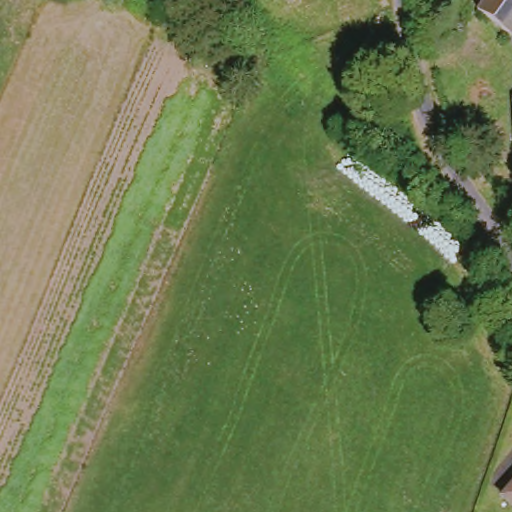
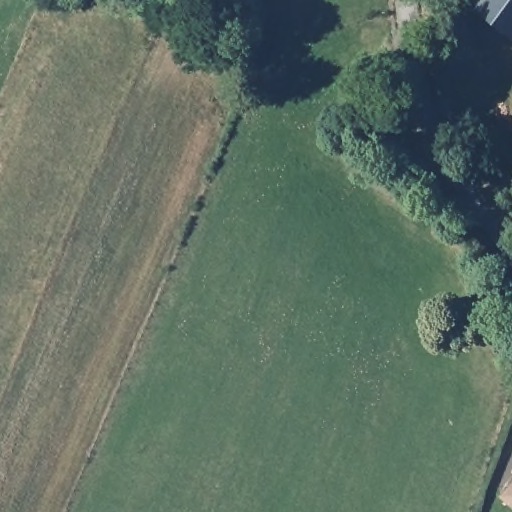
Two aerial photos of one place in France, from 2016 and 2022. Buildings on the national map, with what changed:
unchanged [(432,0),(460,0),(457,15),(430,8),(430,4),(432,0)]
unchanged [(482,0),(512,0),(512,27),(480,4),(482,0)]
unchanged [(512,480),(512,506),(499,494),(512,480)]

